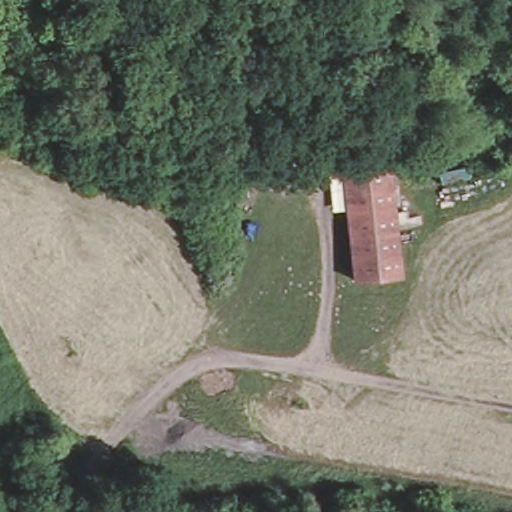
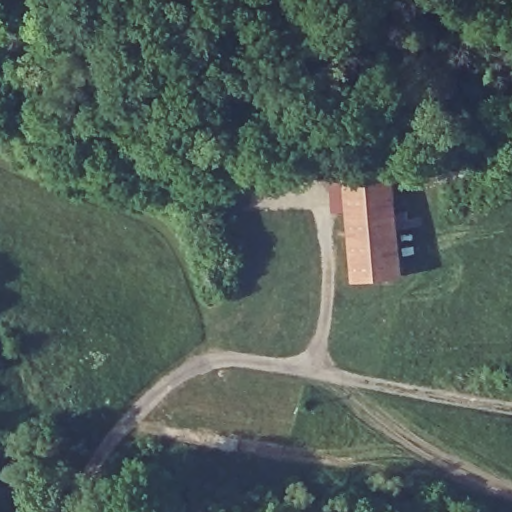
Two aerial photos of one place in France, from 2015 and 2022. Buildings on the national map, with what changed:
unchanged [(391,163),(403,276),(357,279),(345,167),(391,163)]

